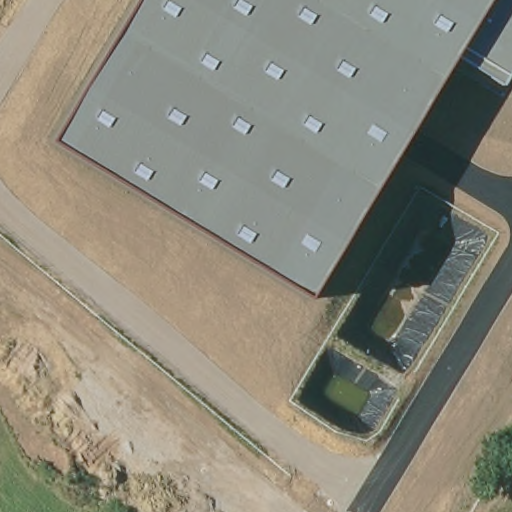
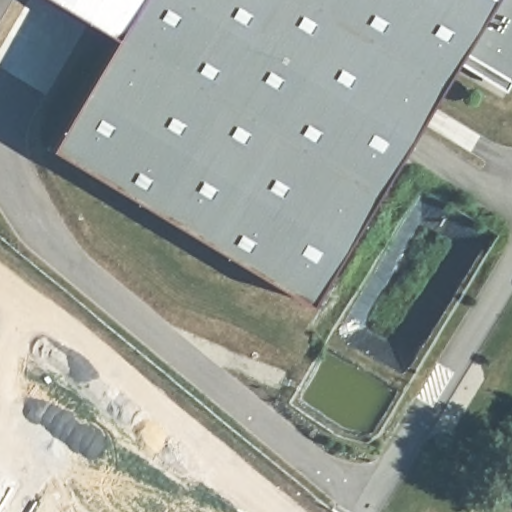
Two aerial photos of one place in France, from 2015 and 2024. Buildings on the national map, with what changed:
unchanged [(132,0),(512,0),(512,68),(500,89),(451,58),(306,297),(47,141),(132,0)]
new [(111,34),(54,0),(132,0),(111,34)]

